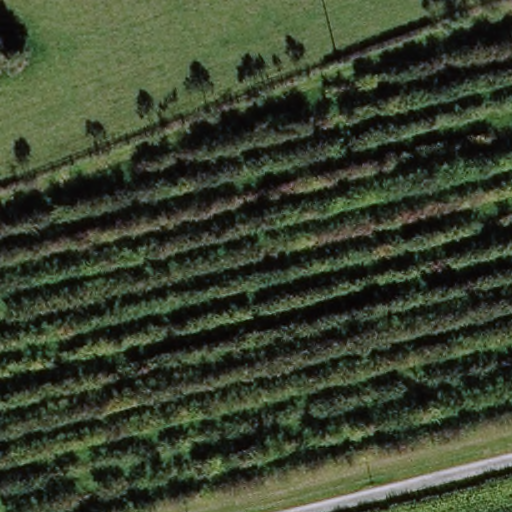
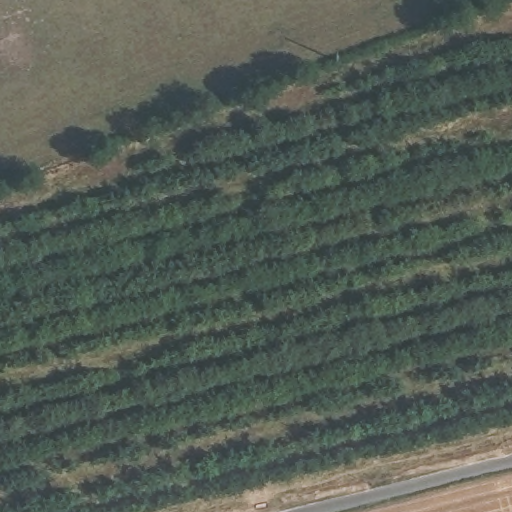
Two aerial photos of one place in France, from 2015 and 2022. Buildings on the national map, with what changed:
[]

